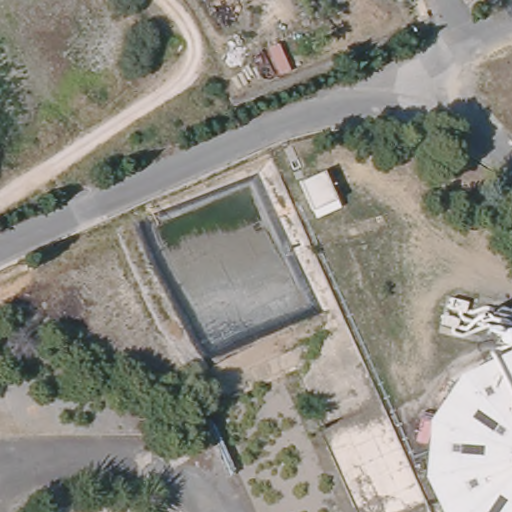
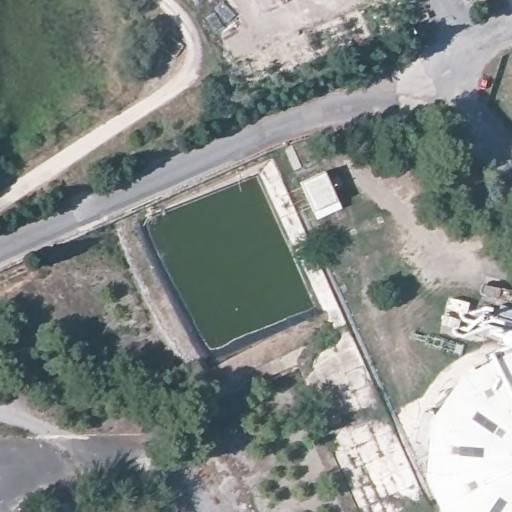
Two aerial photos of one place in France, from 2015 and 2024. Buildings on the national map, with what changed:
unchanged [(334,172),(347,202),(322,212),(310,183),(334,172)]

